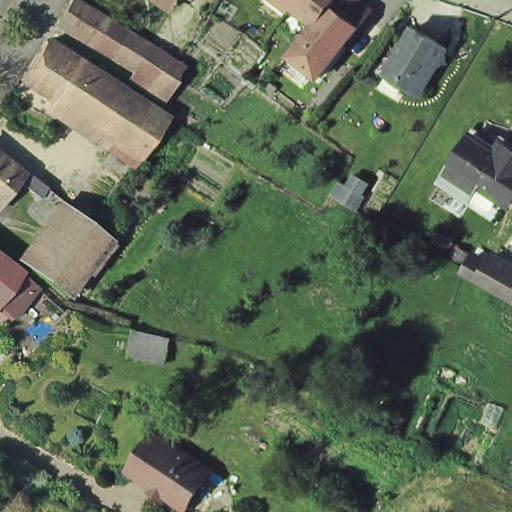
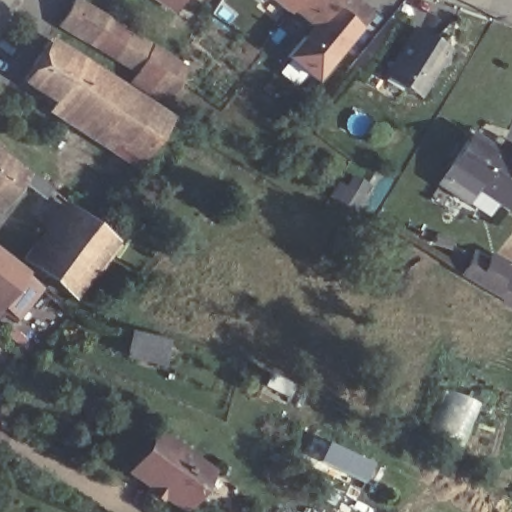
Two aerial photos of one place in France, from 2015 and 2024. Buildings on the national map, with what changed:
unchanged [(57,24),(72,0),(78,0),(127,30),(110,57),(57,24)]
unchanged [(170,0),(186,0),(181,7),(170,0)]
unchanged [(315,33),(320,36),(332,22),(327,18),(325,21),(304,3),(301,7),(292,0),(366,0),(379,10),(327,74),(300,52),(315,33)]
unchanged [(417,23),(450,43),(446,49),(448,57),(440,59),(424,86),(417,87),(410,83),(402,97),(380,84),(392,66),(417,23)]
unchanged [(177,61),(155,99),(128,82),(135,72),(110,57),(127,30),(177,61)]
unchanged [(23,79),(47,41),(80,61),(55,99),(23,79)]
unchanged [(80,61),(169,117),(144,155),(55,99),(80,61)]
unchanged [(474,147),(477,142),(501,157),(503,154),(507,149),(512,152),(512,211),(510,214),(454,177),(474,147)]
unchanged [(20,184),(0,212),(0,158),(25,178),(27,175),(54,196),(50,202),(45,198),(43,201),(20,184)]
unchanged [(329,196),(337,182),(360,196),(351,210),(329,196)]
unchanged [(57,291),(21,263),(64,207),(100,234),(57,291)]
unchanged [(512,304),(476,283),(461,274),(473,255),(488,263),(492,256),(512,268),(512,304)]
unchanged [(3,313),(0,311),(0,262),(10,269),(27,282),(3,313)]
unchanged [(165,340),(159,364),(125,356),(131,332),(165,340)]
unchanged [(187,509),(137,475),(132,472),(157,435),(162,438),(212,472),(187,509)]

